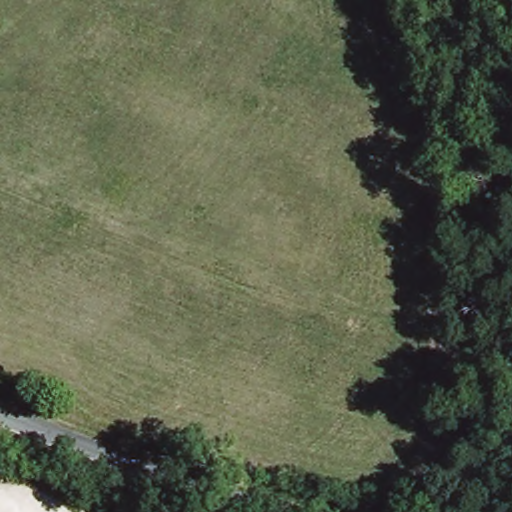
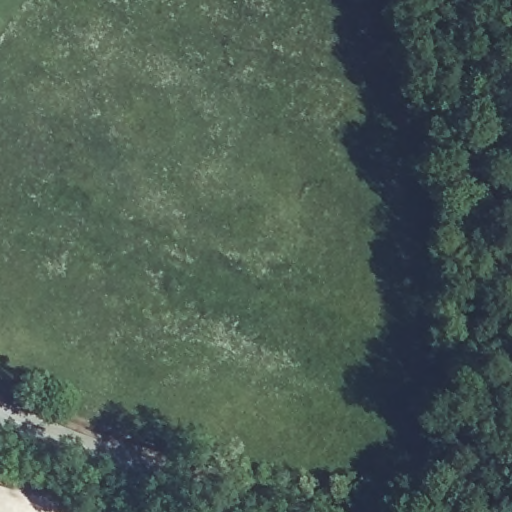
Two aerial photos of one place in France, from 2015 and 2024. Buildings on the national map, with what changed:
[]

